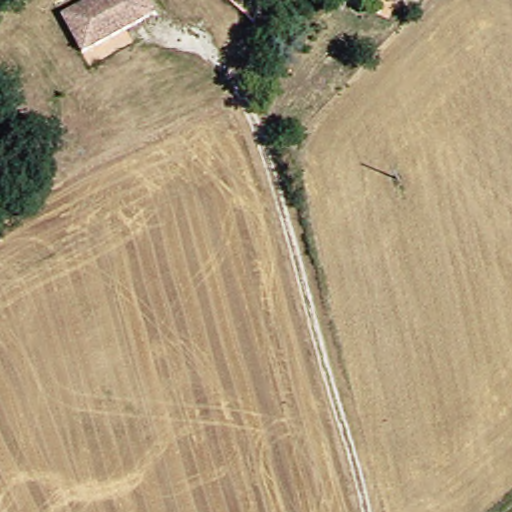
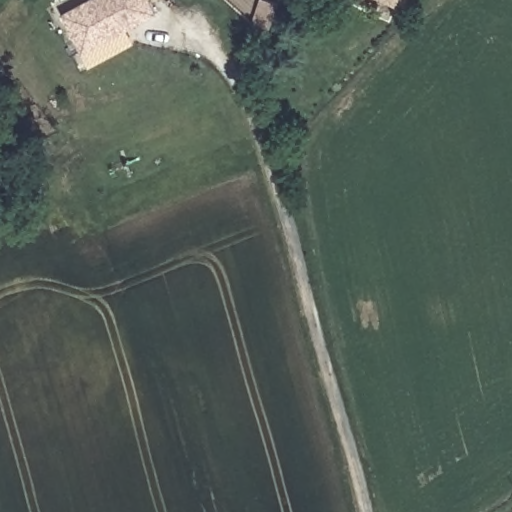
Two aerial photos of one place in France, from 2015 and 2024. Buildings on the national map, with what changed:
unchanged [(81,0),(147,0),(152,12),(80,51),(58,12),(81,0)]

